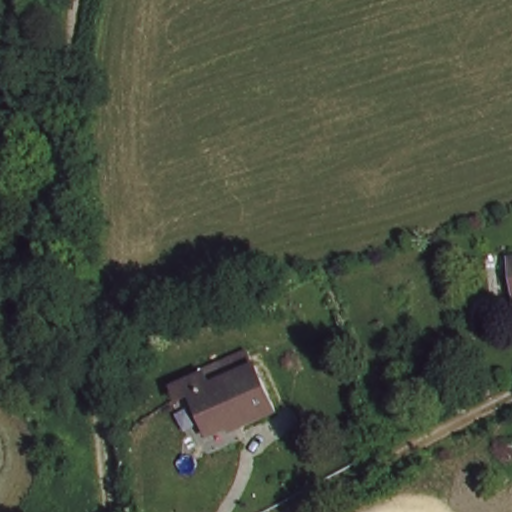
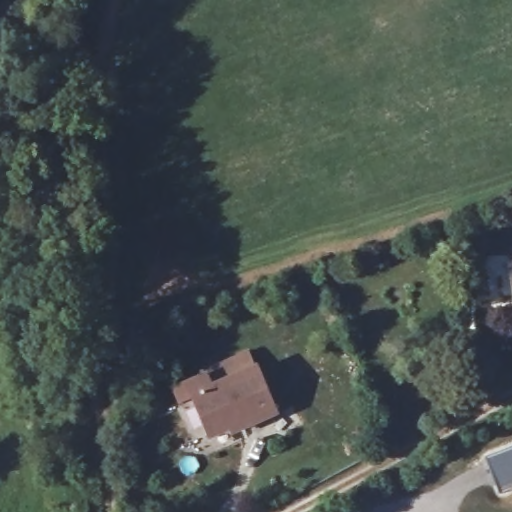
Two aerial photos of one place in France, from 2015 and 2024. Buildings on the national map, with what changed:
unchanged [(276,406),(241,424),(239,420),(209,432),(184,382),(205,373),(211,385),(256,364),(276,406)]
new [(512,491),(499,496),(482,454),(512,443),(512,491)]

